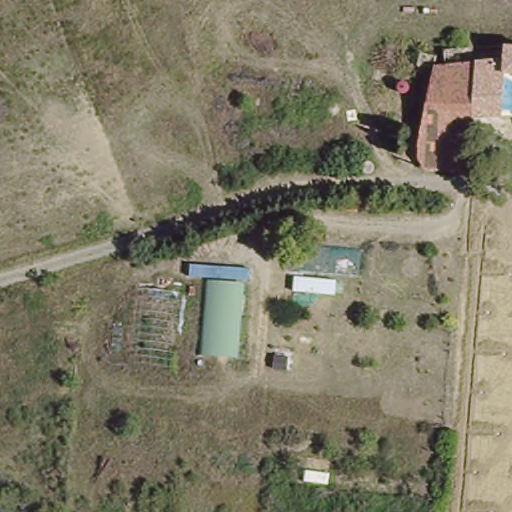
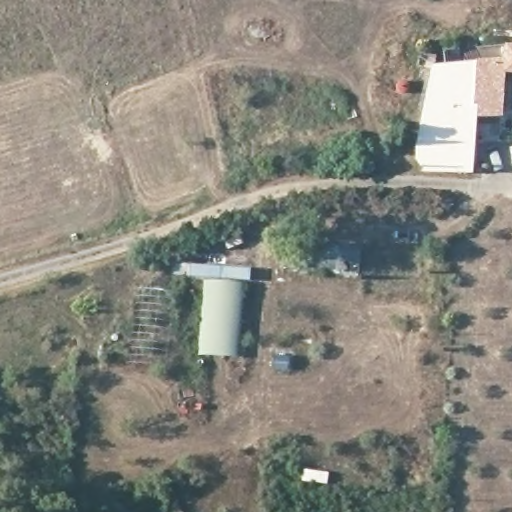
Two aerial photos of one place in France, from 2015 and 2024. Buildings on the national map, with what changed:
unchanged [(501,121),(470,122),(468,171),(415,167),(419,122),(401,119),(413,54),(431,66),(502,60),(502,48),(512,50),(512,75),(502,74),(501,121)]
unchanged [(288,239),(361,247),(360,274),(286,268),(288,239)]
unchanged [(208,281),(251,283),(244,357),(204,352),(208,281)]

